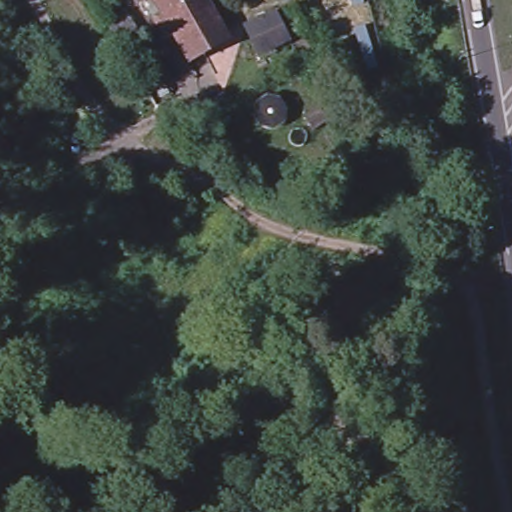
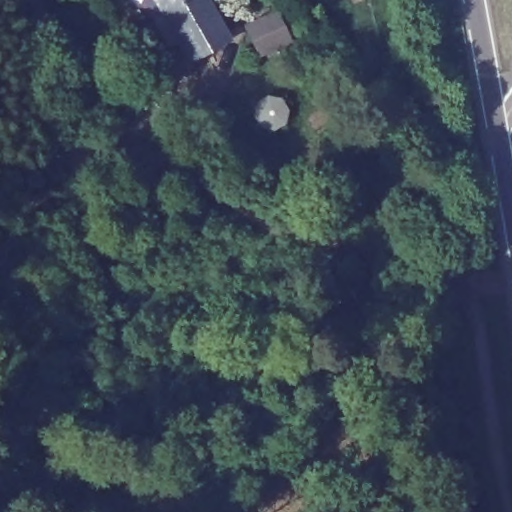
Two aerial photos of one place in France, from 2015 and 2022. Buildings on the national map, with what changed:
unchanged [(151,0),(208,0),(231,40),(186,60),(151,0)]
unchanged [(245,21),(273,6),(291,43),(261,54),(245,21)]
unchanged [(153,45),(135,58),(118,31),(136,19),(153,45)]

